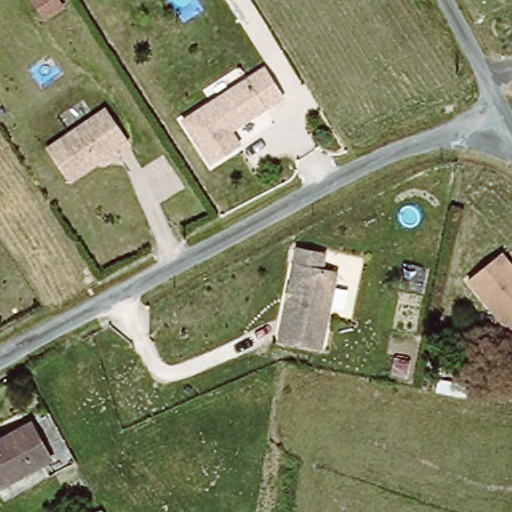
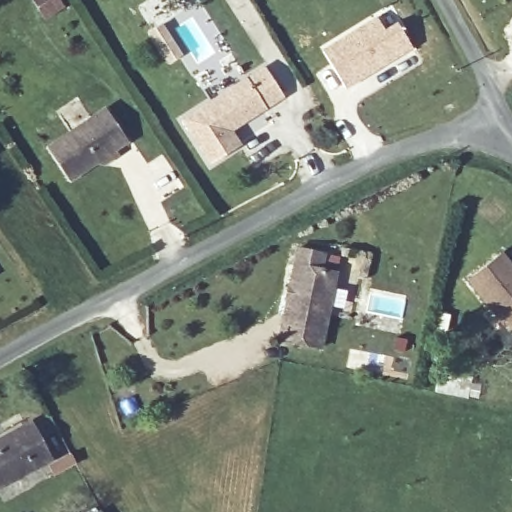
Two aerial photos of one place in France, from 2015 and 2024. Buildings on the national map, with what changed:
new [(382,31),(395,23),(410,49),(343,89),(320,51),(375,17),(382,31)]
unchanged [(180,118),(262,66),(281,95),(230,128),(239,145),(207,163),(180,118)]
unchanged [(125,142),(110,152),(115,158),(101,167),(95,162),(65,182),(43,148),(103,109),(125,142)]
unchanged [(275,340),(293,251),(320,258),(320,273),(331,276),(316,348),(275,340)]
unchanged [(465,279),(498,254),(512,269),(512,335),(510,337),(465,279)]
unchanged [(0,491),(0,444),(34,427),(52,463),(0,491)]
unchanged [(108,512),(97,512),(105,507),(108,512)]

